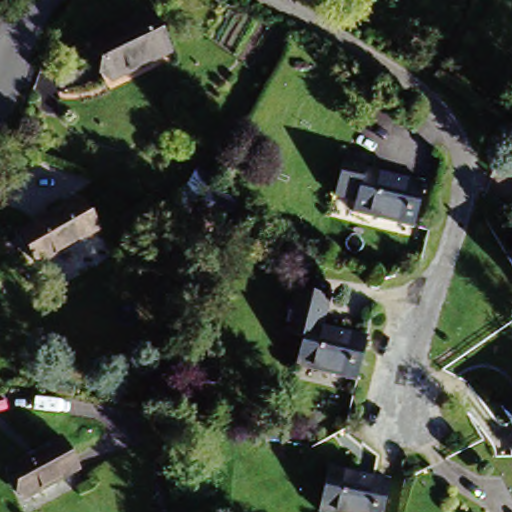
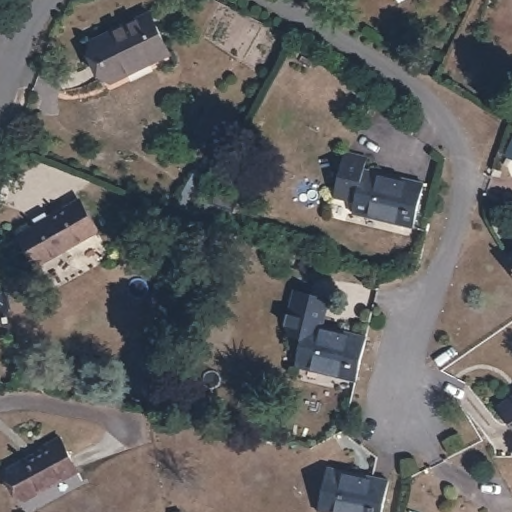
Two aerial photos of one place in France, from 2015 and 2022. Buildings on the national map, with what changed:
unchanged [(148,22),(160,58),(97,81),(86,45),(148,22)]
unchanged [(417,233),(354,228),(355,214),(332,212),(335,168),(358,170),(358,174),(425,182),(417,233)]
unchanged [(98,233),(35,265),(20,234),(85,201),(98,233)]
unchanged [(512,249),(512,262),(506,252),(512,249)]
unchanged [(289,343),(283,334),(287,313),(290,297),(323,304),(318,333),(336,337),(368,343),(366,353),(358,385),(293,372),(298,344),(289,343)]
unchanged [(512,404),(512,425),(502,413),(512,404)]
unchanged [(68,444),(80,474),(25,498),(10,469),(68,444)]
unchanged [(317,512),(327,467),(377,477),(380,477),(372,512),(320,512),(317,512)]

